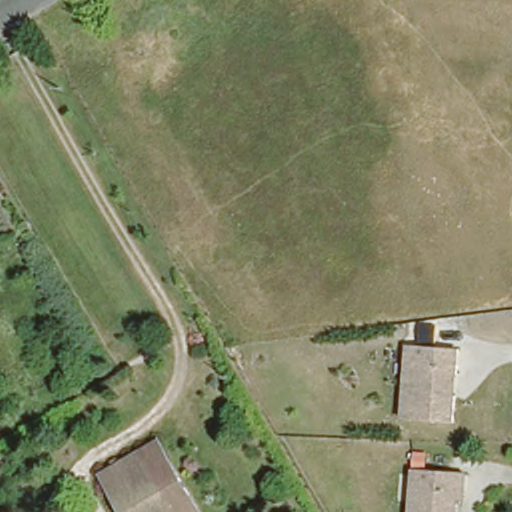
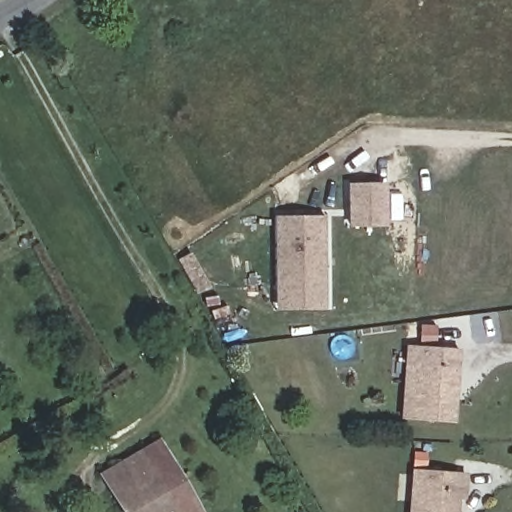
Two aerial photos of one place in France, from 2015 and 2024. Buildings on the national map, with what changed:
new [(348,227),(347,183),(385,182),(387,226),(348,227)]
new [(325,309),(274,311),(274,216),(323,215),(325,309)]
unchanged [(445,369),(444,389),(452,389),(450,415),(400,413),(405,341),(455,344),(453,369),(445,369)]
unchanged [(160,482),(147,460),(110,482),(102,468),(160,436),(179,471),(160,482)]
unchanged [(202,512),(126,512),(110,482),(147,460),(160,482),(179,471),(182,476),(202,512)]
unchanged [(457,496),(452,496),(451,512),(408,512),(410,469),(460,471),(457,496)]

